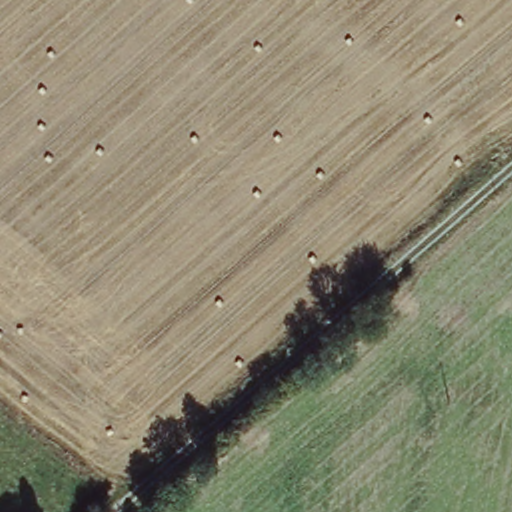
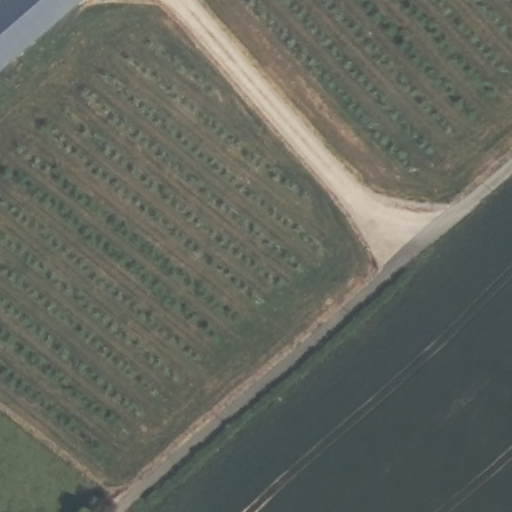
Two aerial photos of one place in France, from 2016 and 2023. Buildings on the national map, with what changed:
new [(72,0),(0,61),(0,0),(72,0)]

